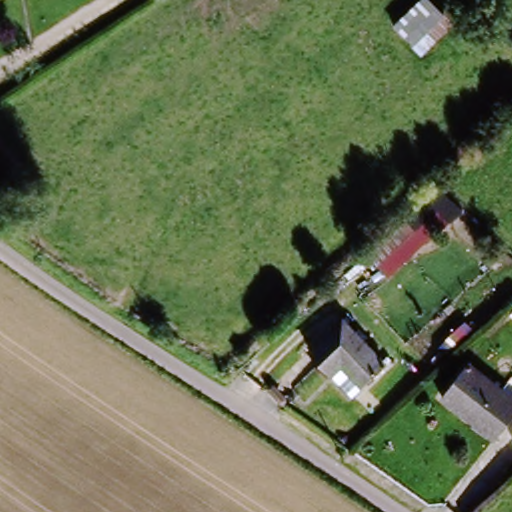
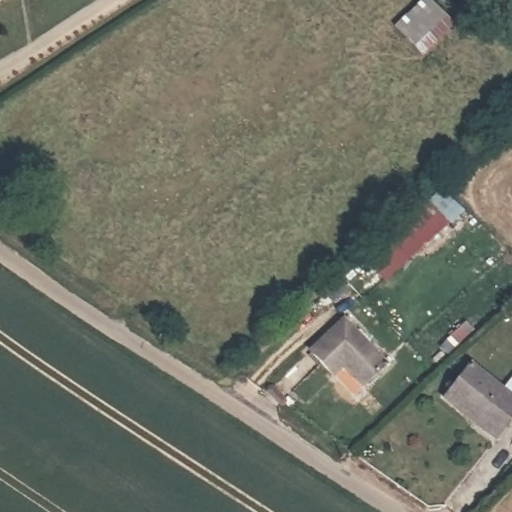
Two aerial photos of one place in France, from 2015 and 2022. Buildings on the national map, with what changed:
unchanged [(420,0),(429,0),(454,24),(423,57),(393,28),(420,0)]
unchanged [(417,222),(454,187),(471,205),(454,220),(445,211),(424,229),(384,263),(375,253),(414,220),(417,222)]
unchanged [(342,320),(381,363),(346,394),(308,351),(342,320)]
unchanged [(512,394),(512,412),(497,435),(443,400),(466,364),(512,394)]

